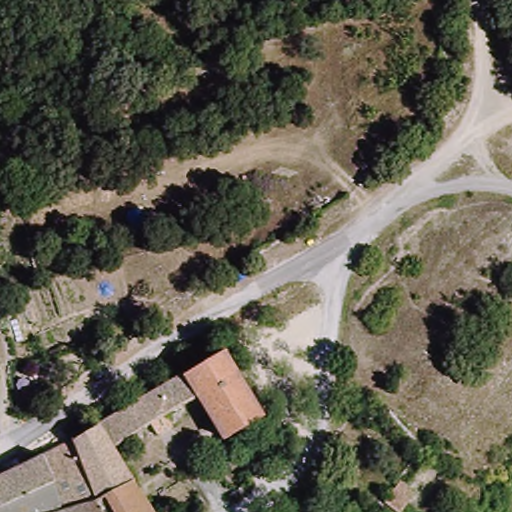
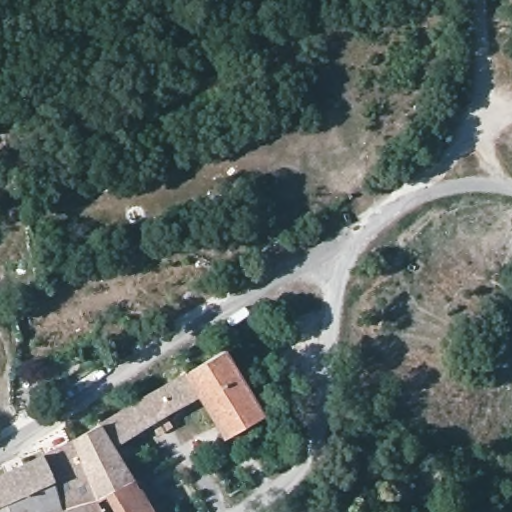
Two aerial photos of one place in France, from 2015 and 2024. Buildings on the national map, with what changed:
unchanged [(229,348),(269,415),(232,437),(205,395),(190,372),(229,348)]
unchanged [(190,372),(205,395),(187,405),(120,445),(140,480),(113,497),(105,501),(80,438),(190,372)]
unchanged [(73,507),(70,500),(60,477),(0,505),(0,476),(80,438),(105,501),(111,512),(57,512),(60,511),(73,507)]
unchanged [(70,500),(39,510),(39,512),(0,512),(0,505),(60,477),(70,500)]
unchanged [(158,512),(121,512),(113,497),(140,480),(158,512)]
unchanged [(420,495),(405,512),(392,512),(386,507),(403,481),(420,495)]

